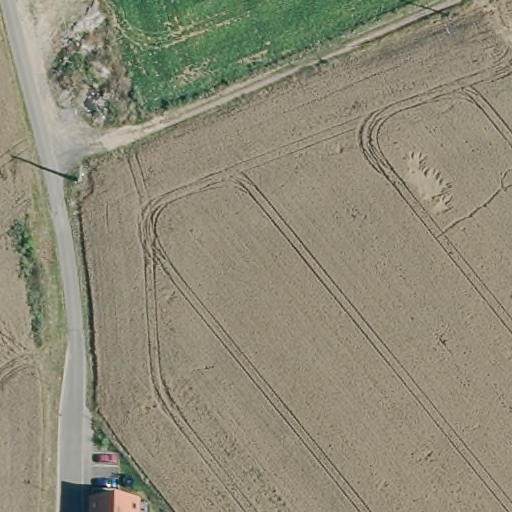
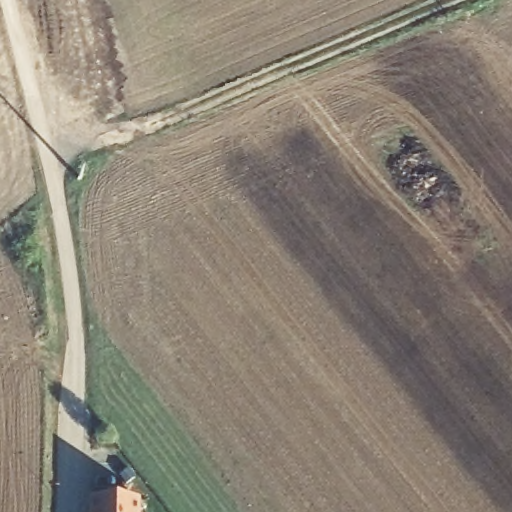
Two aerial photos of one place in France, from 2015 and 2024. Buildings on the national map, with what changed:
unchanged [(90,497),(139,498),(139,512),(90,512),(90,497)]

